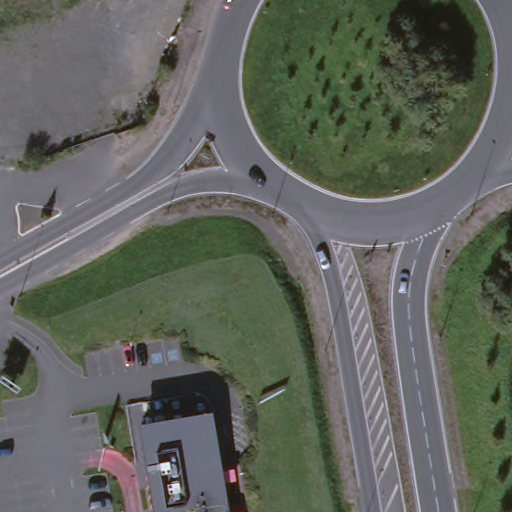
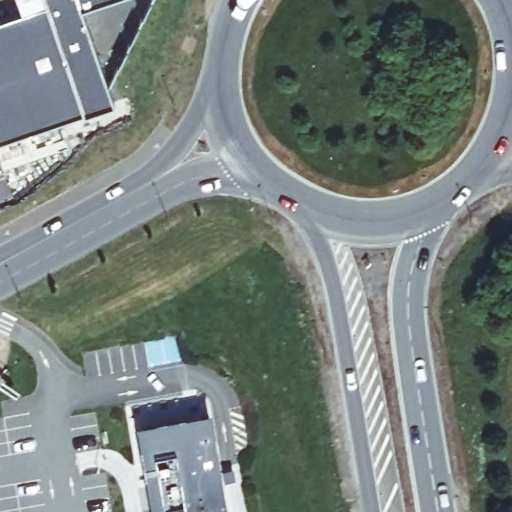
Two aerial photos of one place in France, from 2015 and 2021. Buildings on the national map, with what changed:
new [(82,8),(112,103),(83,113),(0,142),(0,20),(21,13),(17,0),(103,0),(82,8)]
unchanged [(223,468),(230,512),(155,512),(141,427),(149,426),(211,412),(216,469),(223,468)]

